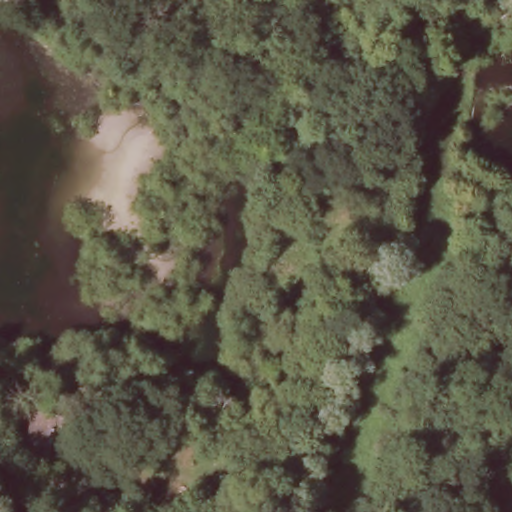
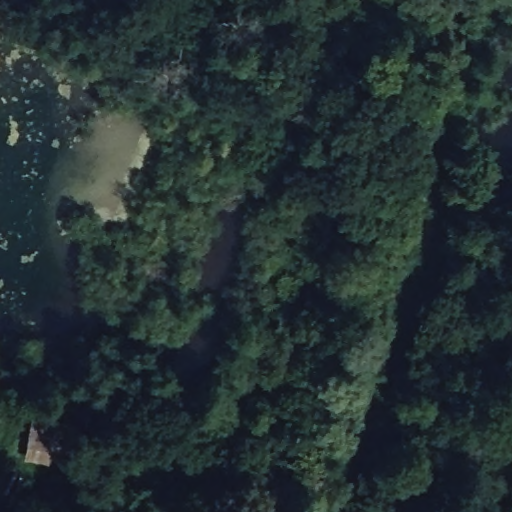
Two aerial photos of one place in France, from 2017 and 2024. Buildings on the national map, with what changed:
unchanged [(50,413),(54,413),(54,445),(25,445),(26,413),(35,413),(35,403),(50,402),(50,413)]

